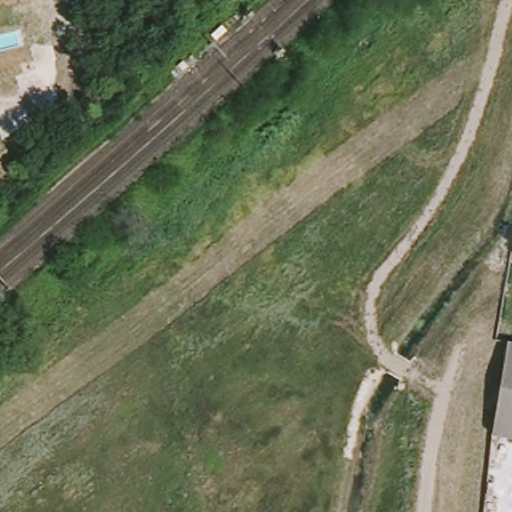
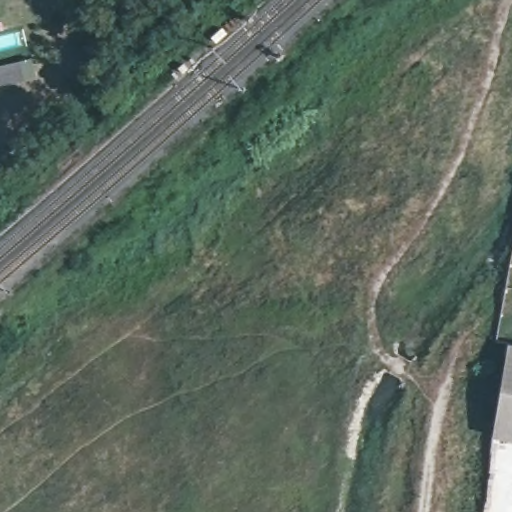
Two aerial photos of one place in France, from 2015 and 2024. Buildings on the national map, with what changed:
unchanged [(498,441),(512,357),(512,444),(498,441)]

